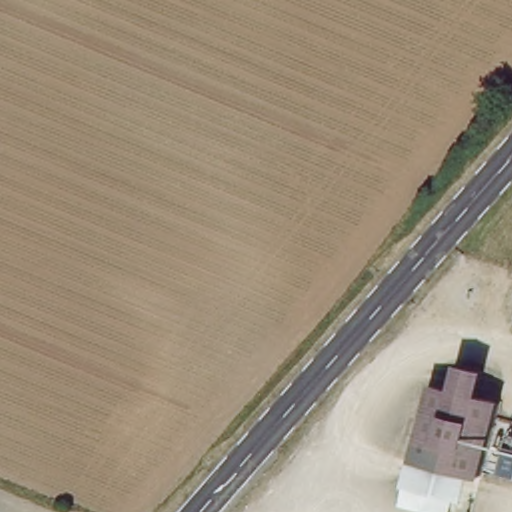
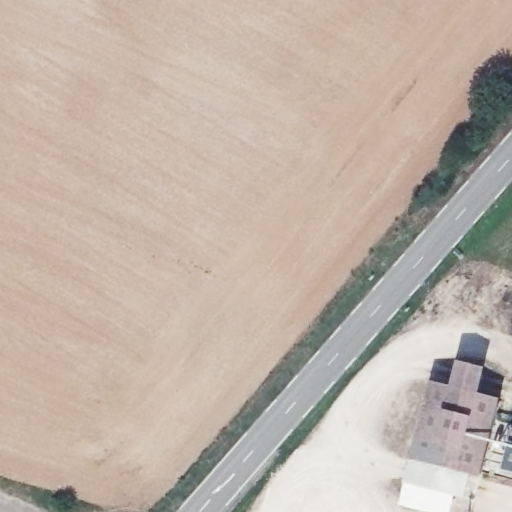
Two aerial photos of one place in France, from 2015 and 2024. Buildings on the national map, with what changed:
unchanged [(423,511),(400,506),(405,484),(428,392),(498,408),(476,501),(473,512),(427,512),(423,511)]
unchanged [(512,440),(512,474),(503,472),(512,440)]

